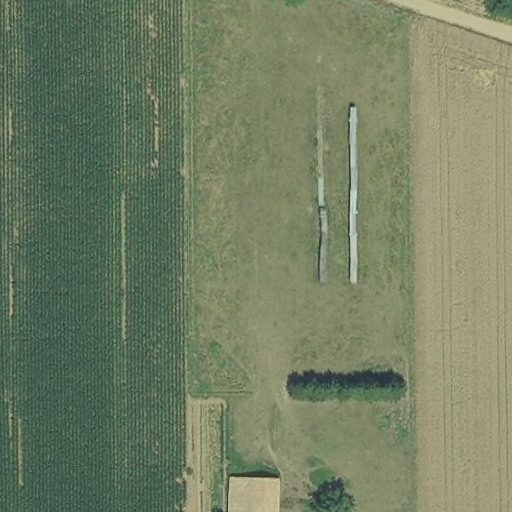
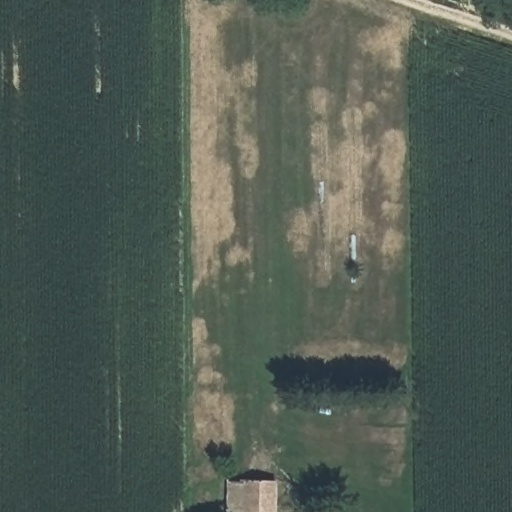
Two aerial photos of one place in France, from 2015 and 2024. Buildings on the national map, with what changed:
unchanged [(278,512),(225,512),(226,481),(279,482),(278,512)]

